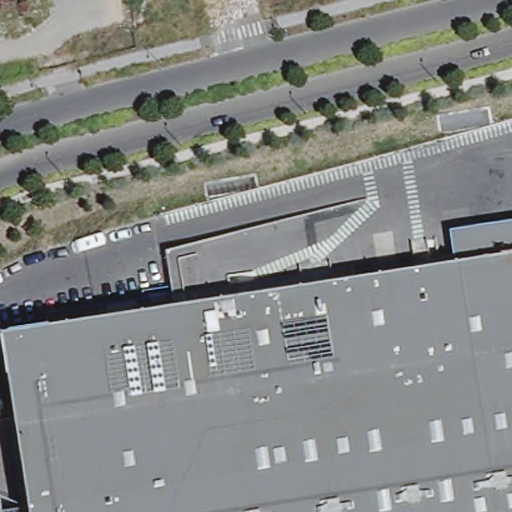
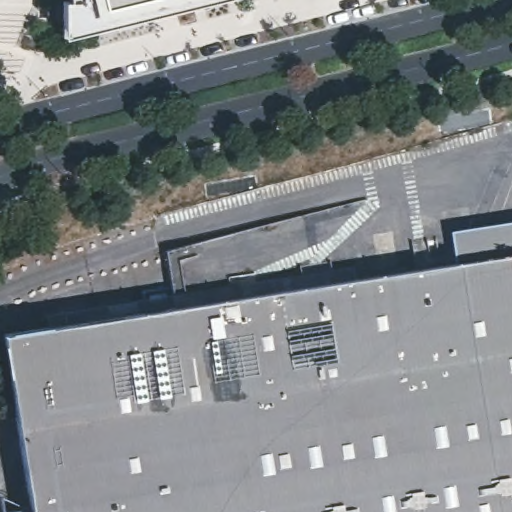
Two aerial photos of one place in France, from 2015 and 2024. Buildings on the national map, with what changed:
new [(59,38),(55,7),(61,4),(61,0),(200,0),(93,27),(59,38)]
unchanged [(3,330),(457,260),(452,230),(512,221),(512,512),(33,512),(3,330)]

